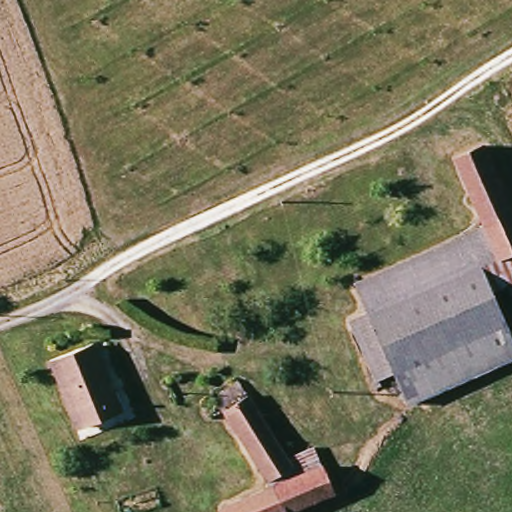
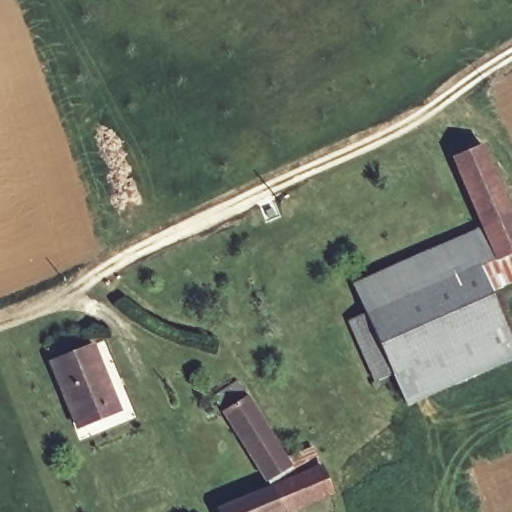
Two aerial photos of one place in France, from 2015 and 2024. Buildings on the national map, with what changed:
unchanged [(481,150),(512,214),(512,253),(479,269),(485,282),(361,333),(393,407),(385,411),(348,324),(372,315),(359,284),(482,221),(453,163),(481,150)]
unchanged [(512,360),(395,412),(393,407),(361,333),(485,282),(512,346),(512,360)]
unchanged [(255,337),(248,320),(263,317),(266,332),(255,337)]
unchanged [(58,362),(97,346),(124,411),(85,427),(58,362)]
unchanged [(317,452),(338,497),(305,512),(234,512),(276,491),(218,400),(241,385),(292,465),(317,452)]

